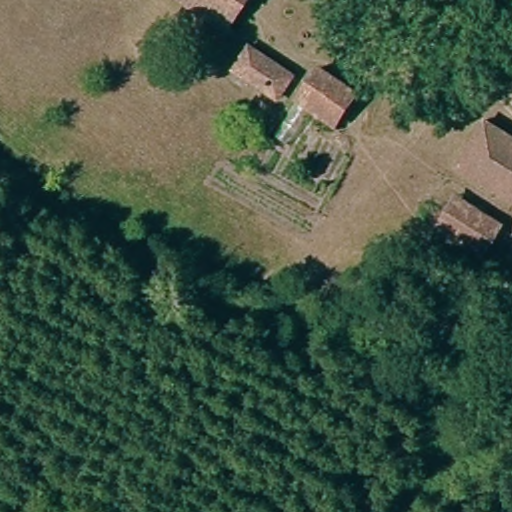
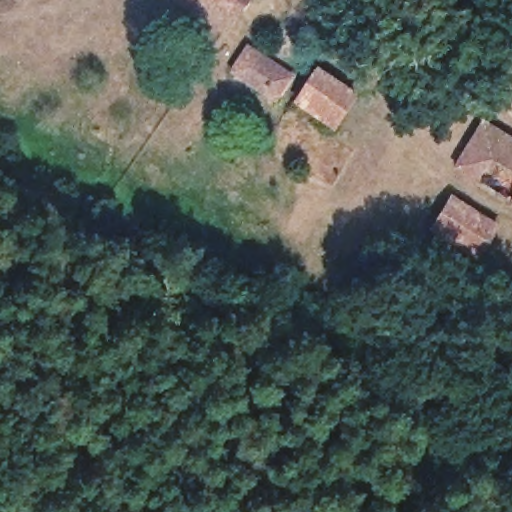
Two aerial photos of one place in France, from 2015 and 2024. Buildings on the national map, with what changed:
unchanged [(182,0),(235,0),(217,26),(182,0)]
unchanged [(260,94),(226,70),(246,46),(287,78),(279,88),(268,100),(260,94)]
unchanged [(339,88),(352,97),(328,128),(294,103),(318,72),(333,83),(339,88)]
unchanged [(461,136),(473,144),(486,123),(512,138),(512,198),(447,157),(461,136)]
unchanged [(485,240),(437,214),(448,196),(494,223),(485,240)]
unchanged [(437,214),(485,240),(475,257),(427,231),(437,214)]

